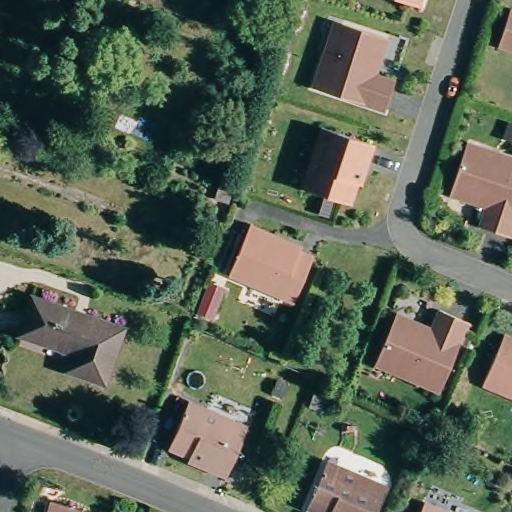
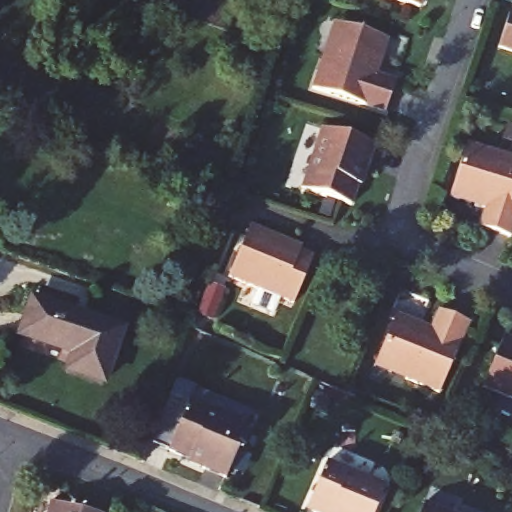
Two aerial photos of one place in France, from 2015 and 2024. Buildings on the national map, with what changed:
unchanged [(419,11),(384,0),(422,0),(419,11)]
unchanged [(510,15),(512,15),(512,56),(498,51),(510,15)]
unchanged [(375,80),(394,85),(384,116),(312,92),(324,58),(334,26),(342,29),(387,44),(375,80)]
unchanged [(357,189),(350,210),(301,193),(321,132),(374,150),(366,174),(361,190),(357,189)]
unchanged [(478,231),(485,212),(449,200),(464,155),(466,147),(498,158),(512,163),(512,232),(509,241),(478,231)]
unchanged [(277,241),(301,251),(299,256),(312,261),(293,307),(233,282),(228,280),(250,230),(255,232),(277,241)]
unchanged [(126,325),(107,378),(71,365),(77,349),(22,329),(35,292),(126,325)]
unchanged [(377,362),(396,318),(431,333),(438,315),(468,327),(438,396),(405,382),(374,370),(377,362)]
unchanged [(504,340),(512,343),(512,403),(482,390),(504,340)]
unchanged [(190,398),(248,420),(235,455),(179,427),(190,398)]
unchanged [(235,455),(228,472),(204,463),(206,460),(172,446),(179,427),(235,455)]
unchanged [(388,485),(376,512),(328,512),(309,503),(313,493),(329,458),(388,485)]
unchanged [(111,510),(110,512),(43,512),(48,492),(111,510)]
unchanged [(437,512),(419,512),(422,505),(437,512)]

